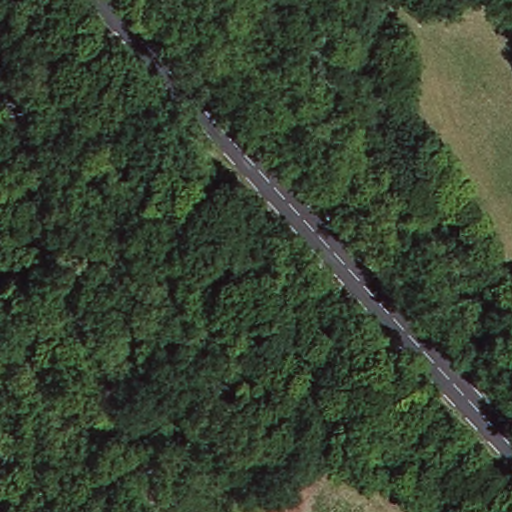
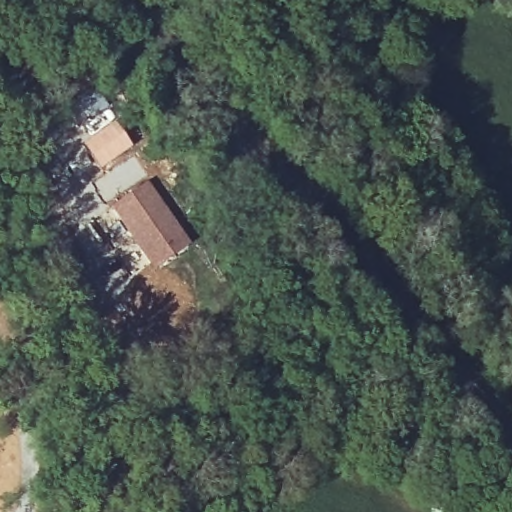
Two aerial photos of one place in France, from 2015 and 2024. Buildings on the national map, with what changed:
new [(115,124),(132,148),(100,170),(83,145),(115,124)]
new [(148,182),(191,245),(155,271),(110,209),(148,182)]

